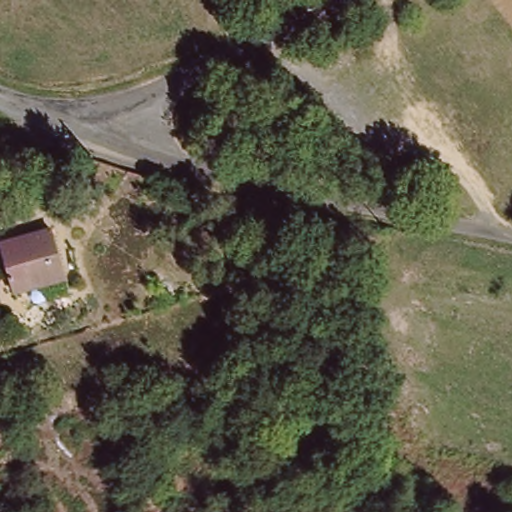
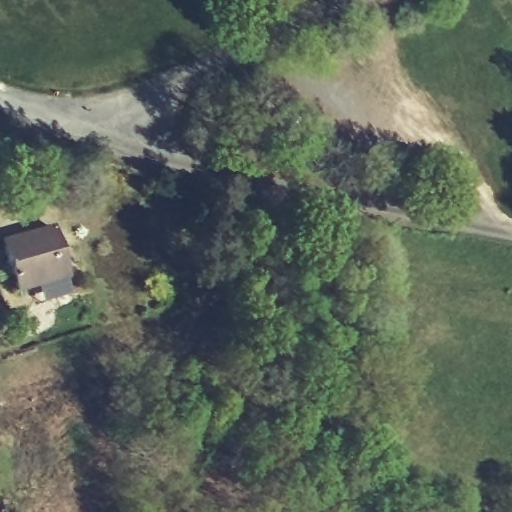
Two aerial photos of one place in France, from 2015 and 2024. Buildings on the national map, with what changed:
unchanged [(64,277),(16,291),(2,243),(50,229),(64,277)]

